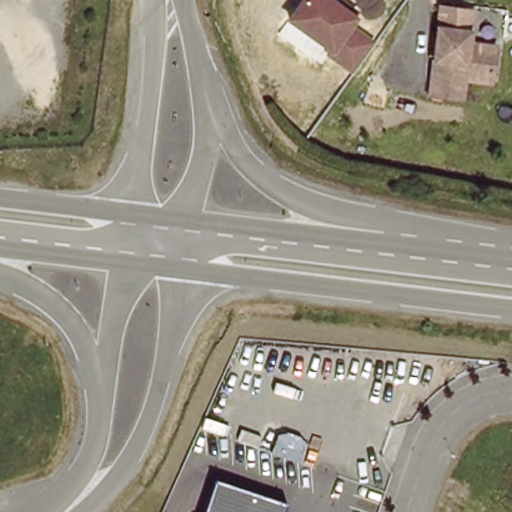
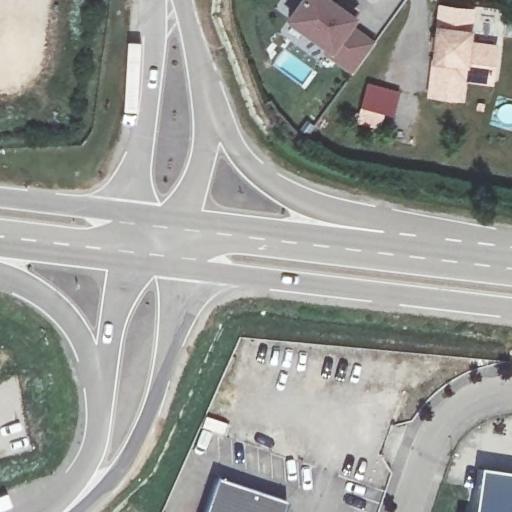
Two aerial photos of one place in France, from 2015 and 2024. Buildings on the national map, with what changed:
unchanged [(336,0),(359,16),(353,27),(375,42),(352,75),(326,57),(330,52),(285,19),(299,0),(336,0)]
unchanged [(475,10),(472,44),(499,47),(494,81),(468,79),(466,96),(466,100),(434,97),(434,92),(444,7),(475,10)]
new [(381,130),(356,123),(368,82),(401,91),(394,117),(385,114),(381,130)]
new [(476,467),(512,472),(512,512),(470,512),(476,467)]
unchanged [(284,512),(204,512),(214,480),(286,505),(284,512)]

